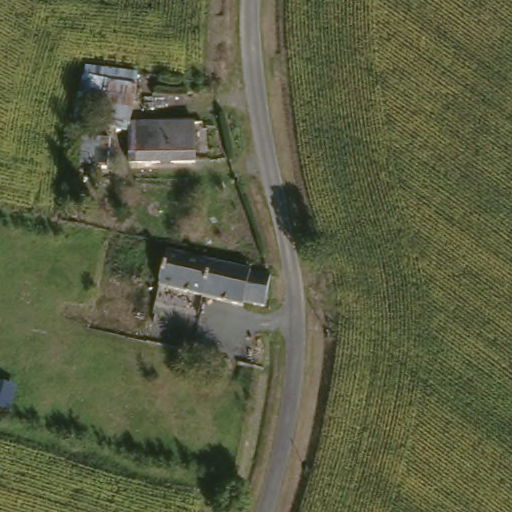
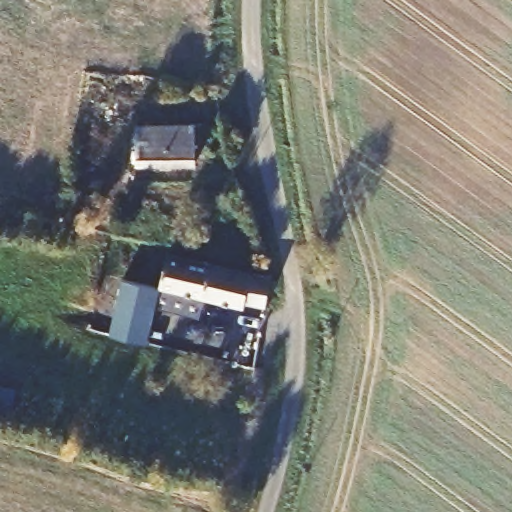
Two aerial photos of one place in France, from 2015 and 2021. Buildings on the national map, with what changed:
unchanged [(193,161),(137,164),(135,125),(191,122),(193,161)]
unchanged [(239,300),(237,305),(155,285),(161,255),(245,275),(244,278),(263,283),(267,284),(262,306),(239,300)]
new [(200,318),(156,308),(148,343),(110,335),(121,278),(155,285),(205,297),(200,318)]

